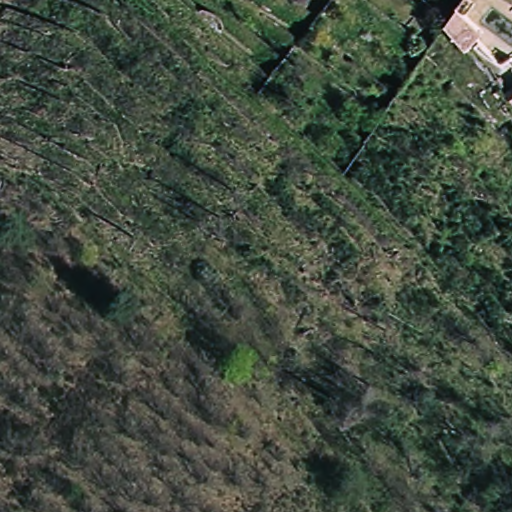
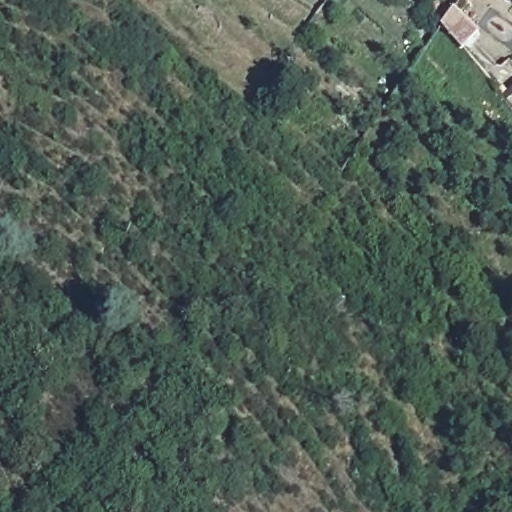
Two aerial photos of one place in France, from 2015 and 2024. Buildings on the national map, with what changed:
unchanged [(445,24),(457,9),(480,32),(463,49),(443,26),(445,24)]
unchanged [(511,15),(512,13),(512,15),(511,15)]
unchanged [(504,94),(512,88),(512,106),(504,94)]

